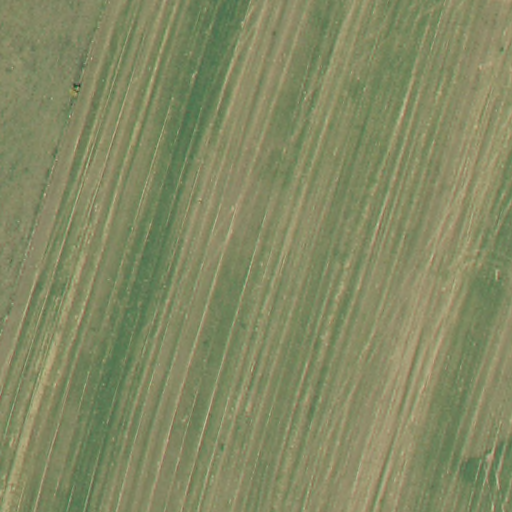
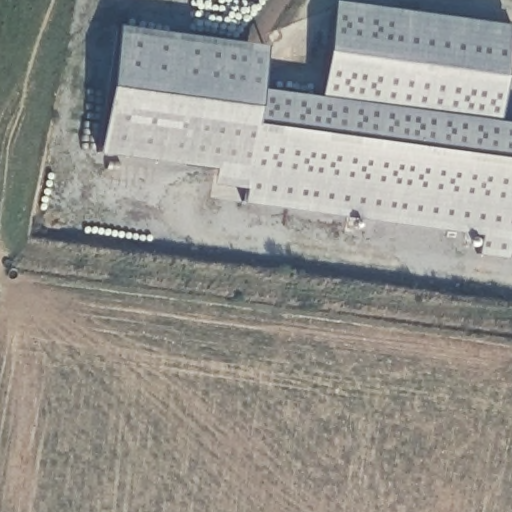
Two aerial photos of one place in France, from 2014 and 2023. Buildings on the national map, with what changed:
new [(266,47),(260,90),(320,99),(334,2),(512,27),(498,123),(512,125),(512,252),(511,260),(480,256),(484,237),(245,204),(247,190),(213,186),(215,172),(100,155),(116,27),(266,47)]

